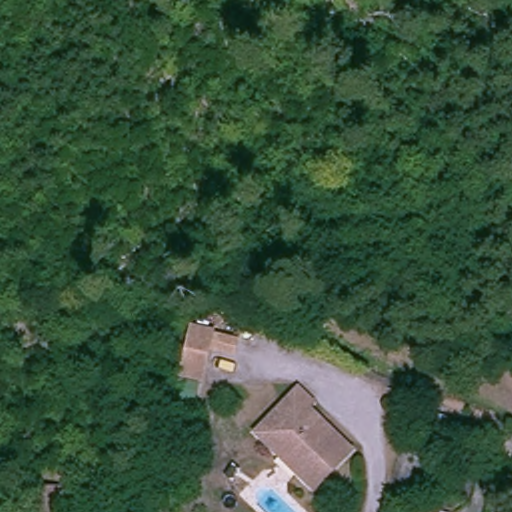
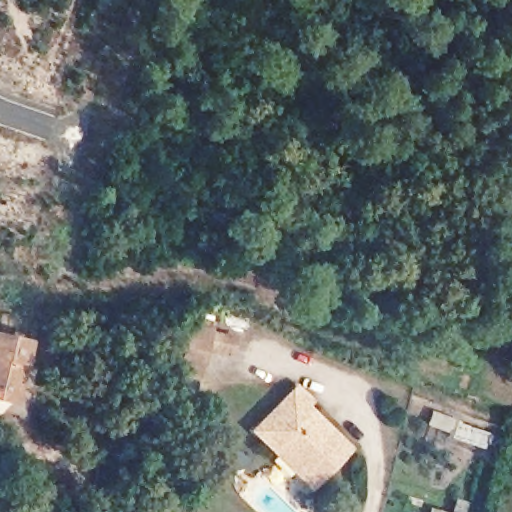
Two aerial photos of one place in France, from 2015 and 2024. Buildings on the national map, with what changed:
unchanged [(192,323),(214,328),(206,372),(185,366),(192,323)]
new [(36,348),(26,388),(22,403),(0,398),(0,367),(7,341),(36,348)]
unchanged [(302,382),(317,396),(311,405),(323,418),(352,445),(315,484),(298,470),(256,430),(275,412),(302,382)]
unchanged [(51,512),(52,507),(71,509),(71,512),(51,512)]

